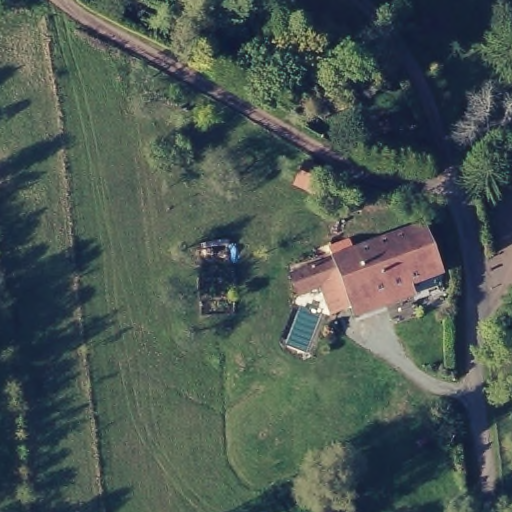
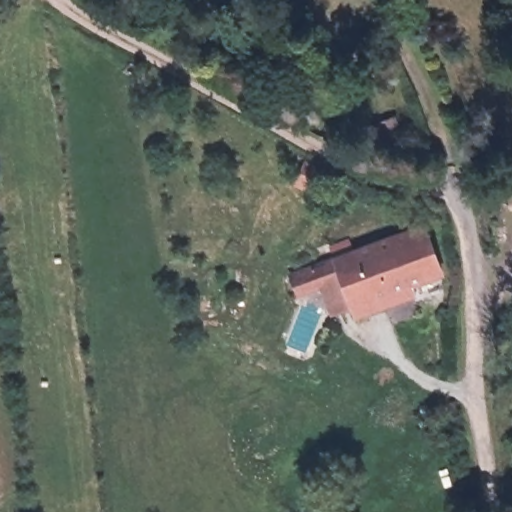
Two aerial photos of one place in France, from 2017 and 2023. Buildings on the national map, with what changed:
unchanged [(297,292),(283,260),(413,213),(435,273),(323,313),(312,287),(302,289),(297,292)]

